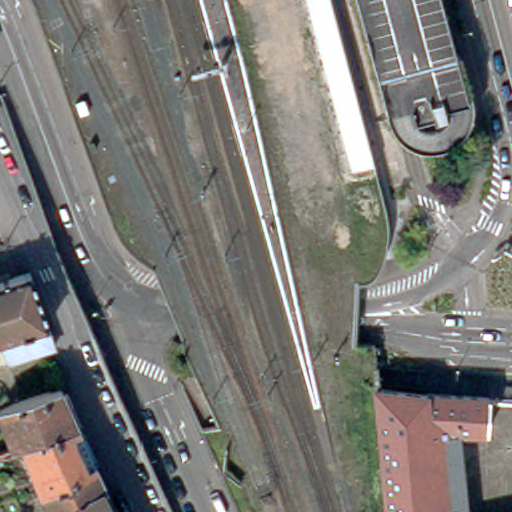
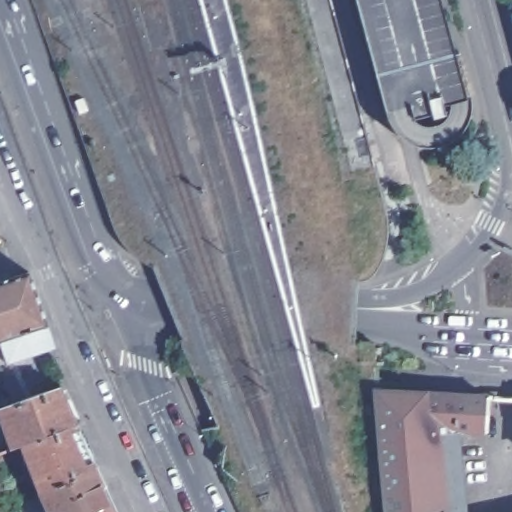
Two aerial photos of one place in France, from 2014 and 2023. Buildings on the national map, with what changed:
unchanged [(380,165),(347,170),(297,0),(335,0),(380,165)]
unchanged [(444,15),(456,60),(458,60),(470,103),(471,110),(470,118),(468,126),(464,133),(459,140),(455,145),(447,149),(441,152),(434,154),(428,153),(418,152),(411,150),(404,146),(399,142),(394,137),(392,131),(390,126),(386,113),(375,70),(364,28),(356,0),(440,0),(444,15)]
unchanged [(11,277),(25,272),(43,324),(41,325),(0,340),(0,281),(11,277)]
unchanged [(4,363),(0,352),(0,340),(41,325),(49,347),(40,349),(4,363)]
unchanged [(481,426),(453,426),(465,512),(385,512),(378,443),(371,388),(483,392),(481,426)]
unchanged [(18,451),(8,454),(0,433),(0,413),(55,391),(73,430),(18,451)]
unchanged [(18,453),(74,432),(79,444),(91,470),(36,498),(18,453)]
unchanged [(91,470),(104,499),(108,507),(98,512),(43,512),(36,498),(91,470)]
unchanged [(110,512),(98,512),(108,507),(110,512)]

